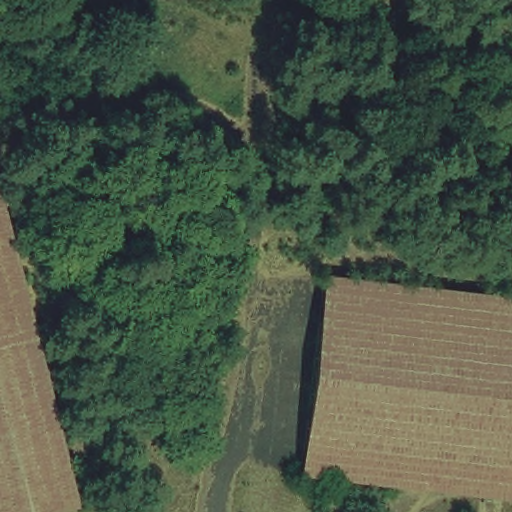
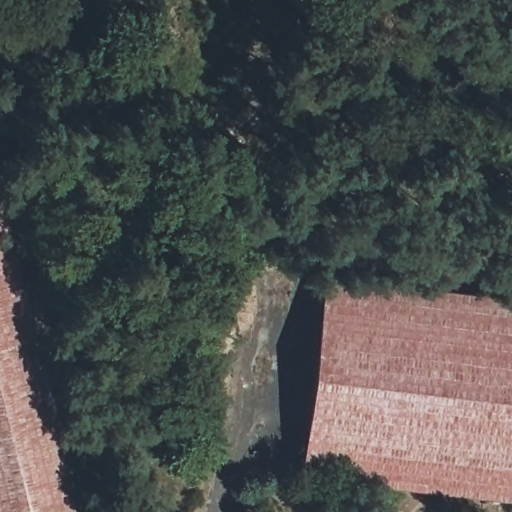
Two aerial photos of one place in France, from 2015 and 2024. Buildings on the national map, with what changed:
unchanged [(82,510),(74,512),(0,512),(0,173),(82,510)]
unchanged [(512,297),(512,502),(302,479),(327,277),(512,297)]

